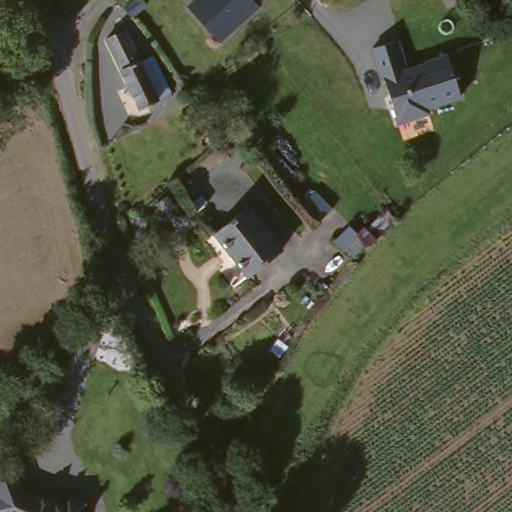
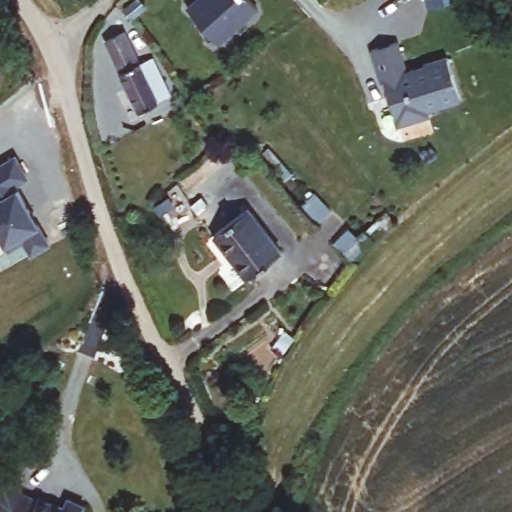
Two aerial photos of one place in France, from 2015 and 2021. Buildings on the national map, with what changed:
unchanged [(184,13),(197,0),(243,0),(253,11),(224,39),(216,46),(202,31),(184,13)]
unchanged [(126,44),(158,104),(139,117),(99,45),(122,28),(132,39),(126,44)]
unchanged [(393,43),(402,74),(422,69),(421,66),(444,59),(456,101),(421,111),(423,116),(392,125),(380,82),(377,83),(368,50),(393,43)]
new [(28,177),(14,185),(16,189),(36,223),(49,243),(32,253),(24,240),(8,249),(4,242),(0,235),(0,164),(14,156),(28,177)]
unchanged [(208,237),(240,208),(276,249),(243,279),(208,237)]
unchanged [(327,245),(342,230),(353,240),(367,224),(379,235),(346,264),(327,245)]
unchanged [(14,474),(23,499),(37,505),(38,503),(59,512),(0,512),(0,480),(14,474)]
unchanged [(68,504),(82,511),(81,512),(65,512),(68,504)]

